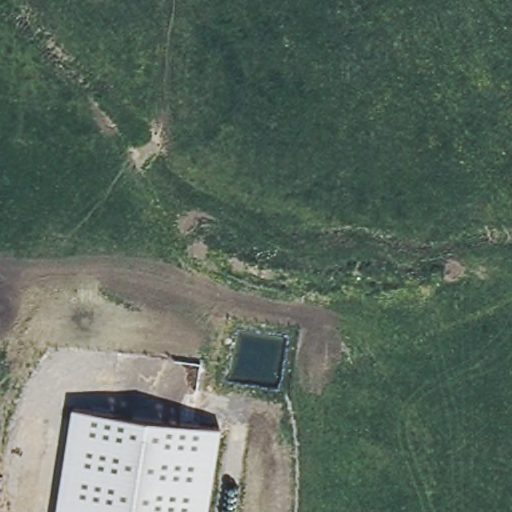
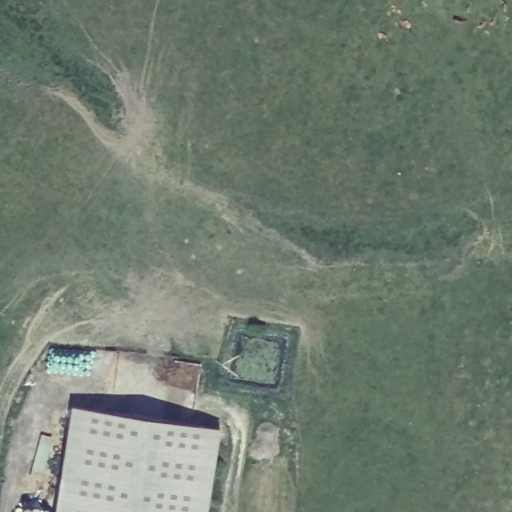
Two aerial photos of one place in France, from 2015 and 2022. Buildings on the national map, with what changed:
unchanged [(71,407),(218,430),(206,512),(54,512),(71,407)]

